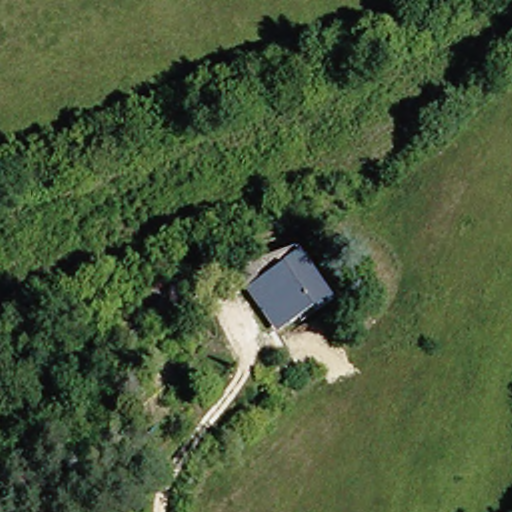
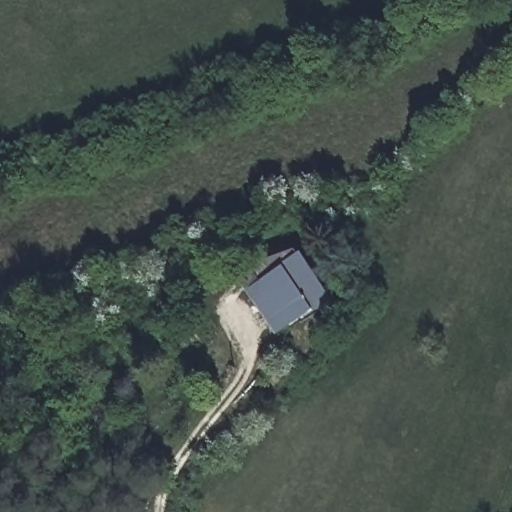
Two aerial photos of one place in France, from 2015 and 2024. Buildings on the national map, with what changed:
unchanged [(282,255),(315,301),(281,329),(273,336),(240,291),(247,284),(282,255)]

